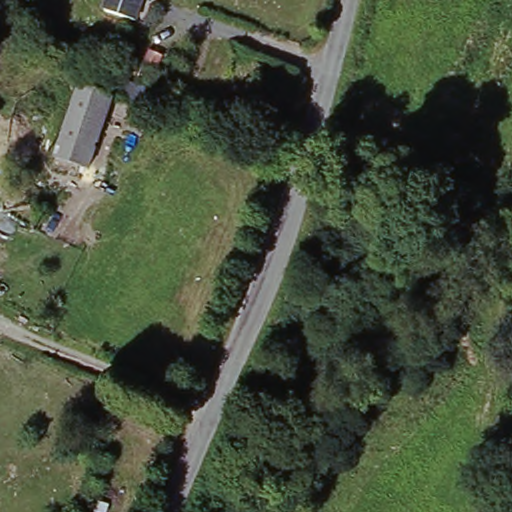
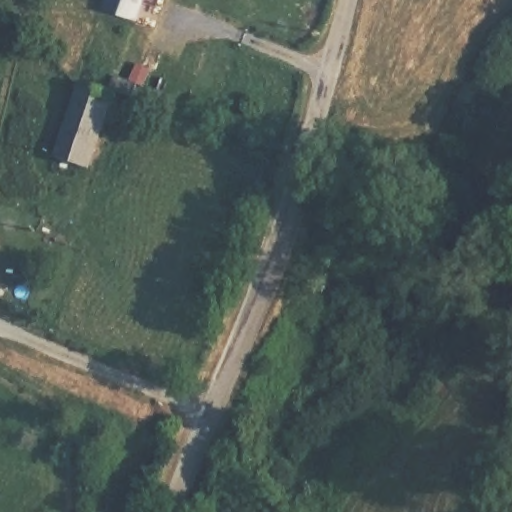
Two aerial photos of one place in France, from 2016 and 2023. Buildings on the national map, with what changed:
unchanged [(139,23),(106,13),(111,0),(147,0),(139,23)]
unchanged [(110,103),(90,169),(59,159),(79,88),(80,87),(110,103)]

